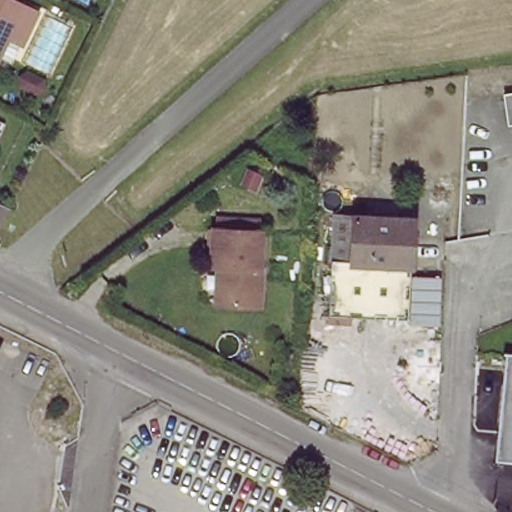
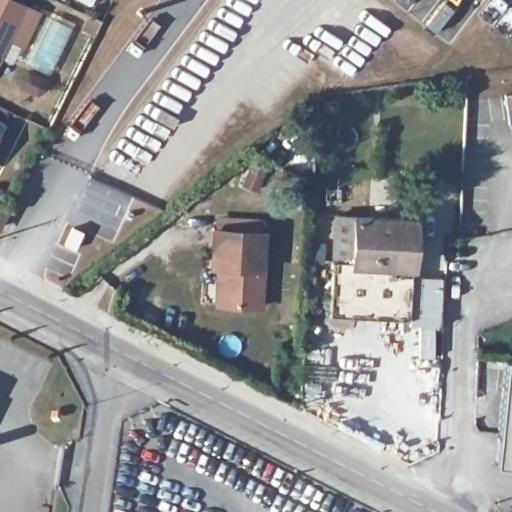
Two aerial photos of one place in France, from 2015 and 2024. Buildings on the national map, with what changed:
unchanged [(30,25),(16,17),(7,38),(18,46),(11,62),(0,58),(0,0),(17,0),(38,10),(30,25)]
unchanged [(506,123),(503,89),(512,89),(512,122),(506,123)]
unchanged [(0,131),(0,127),(1,128),(0,131)]
unchanged [(0,216),(0,208),(3,209),(0,216)]
unchanged [(413,214),(409,314),(335,311),(340,213),(413,214)]
unchanged [(223,266),(214,265),(216,228),(221,228),(221,222),(261,223),(262,231),(260,268),(265,268),(263,305),(228,305),(221,304),(223,266)]
unchanged [(512,378),(512,408),(499,407),(502,377),(512,378)]

